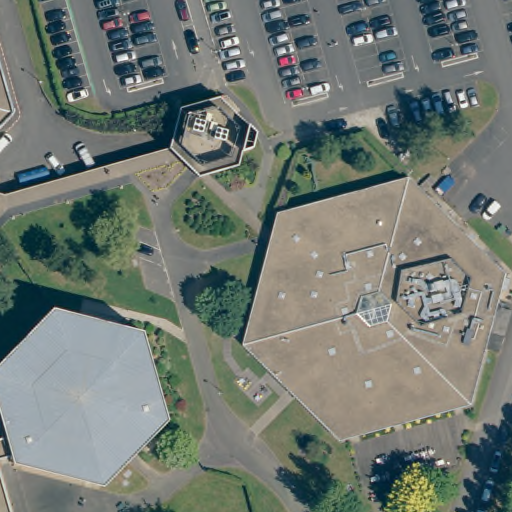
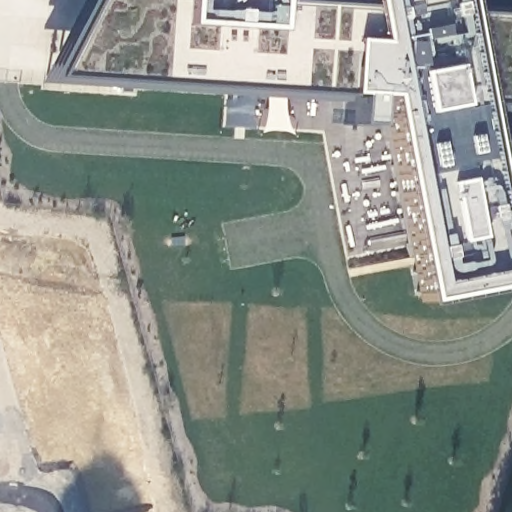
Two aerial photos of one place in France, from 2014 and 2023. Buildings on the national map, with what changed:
new [(508,285),(417,303),(376,95),(368,94),(365,127),(342,124),(344,99),(44,76),(81,0),(512,0),(512,114),(472,110),(508,285)]
demolished [(14,114),(0,127),(0,67),(14,114)]
demolished [(179,108),(217,97),(255,132),(251,148),(240,152),(237,165),(213,172),(183,143),(169,147),(179,108)]
demolished [(410,177),(505,273),(472,403),(340,441),(244,344),(278,213),(410,177)]
demolished [(52,308),(141,330),(166,419),(102,486),(13,463),(11,456),(0,459),(0,361),(52,308)]
demolished [(11,512),(0,512),(0,473),(11,512)]

